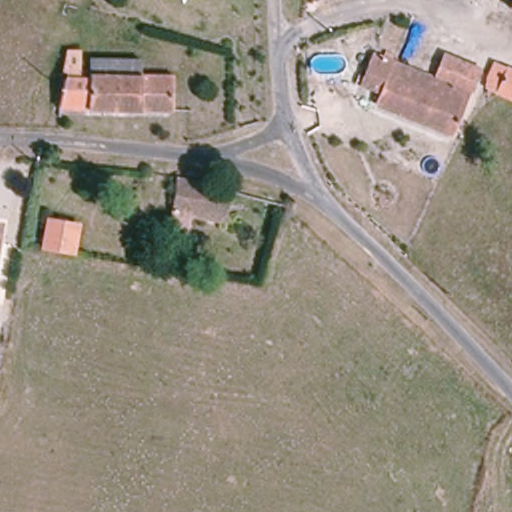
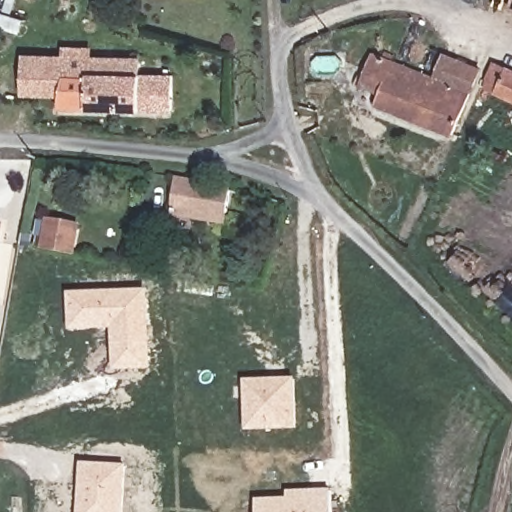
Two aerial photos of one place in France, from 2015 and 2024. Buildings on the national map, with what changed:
unchanged [(142,72),(176,74),(174,117),(59,111),(63,50),(81,50),(80,72),(87,72),(88,59),(143,58),(142,72)]
unchanged [(299,53),(328,52),(328,78),(299,79),(299,53)]
unchanged [(373,95),(388,55),(469,88),(457,127),(373,95)]
new [(27,59),(56,59),(56,69),(56,94),(26,94),(26,68),(27,59)]
unchanged [(501,72),(503,64),(512,68),(512,102),(478,90),(488,68),(501,72)]
unchanged [(218,191),(210,223),(159,209),(167,177),(218,191)]
unchanged [(61,212),(90,219),(87,246),(54,240),(61,212)]
unchanged [(162,250),(184,255),(180,267),(159,262),(162,250)]
new [(71,330),(70,293),(149,291),(151,367),(115,371),(113,328),(71,330)]
new [(295,380),(298,429),(248,428),(245,380),(295,380)]
new [(126,512),(78,512),(81,462),(129,465),(126,512)]
new [(287,498),(287,493),(332,492),(332,512),(258,512),(258,499),(287,498)]

